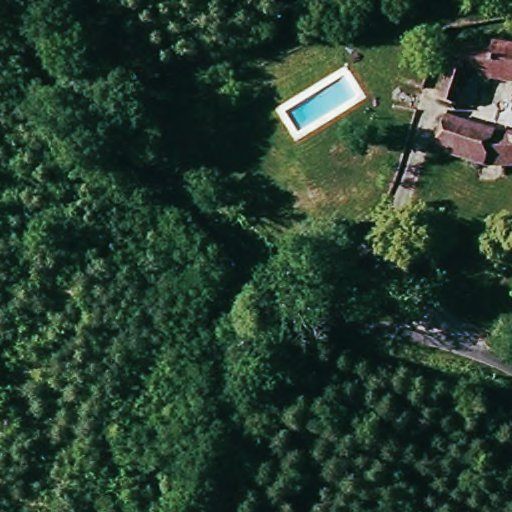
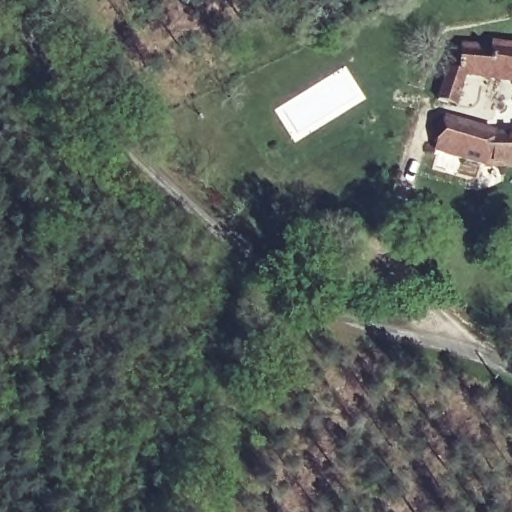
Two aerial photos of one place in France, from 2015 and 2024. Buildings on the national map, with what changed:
unchanged [(490,50),(491,42),(512,46),(512,78),(467,70),(459,105),(447,101),(439,99),(450,52),(460,54),(463,44),(490,50)]
unchanged [(434,145),(442,115),(501,126),(512,127),(512,164),(492,164),(434,145)]

